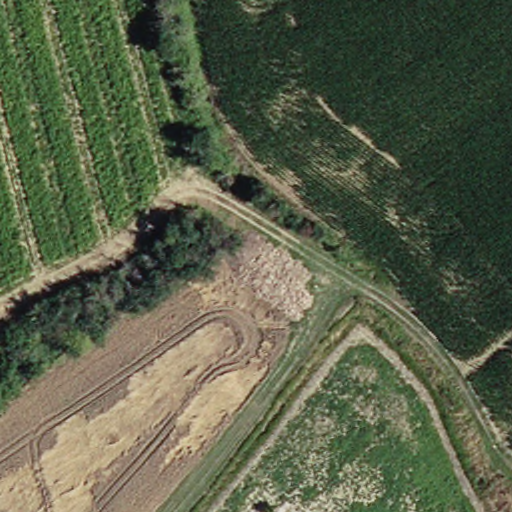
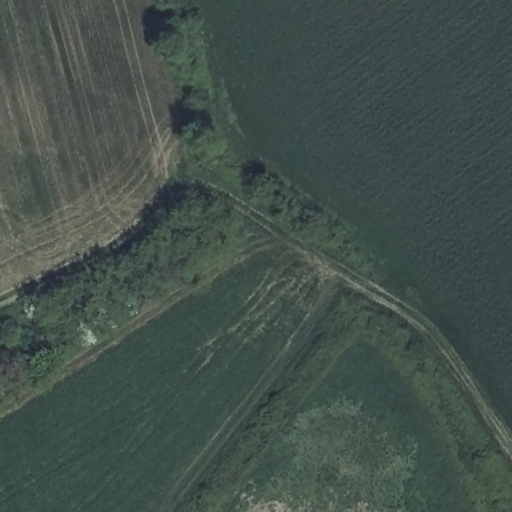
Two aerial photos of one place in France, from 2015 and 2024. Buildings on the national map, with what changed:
[]

